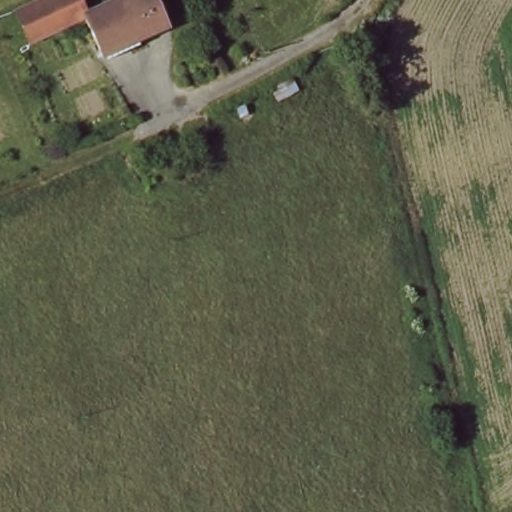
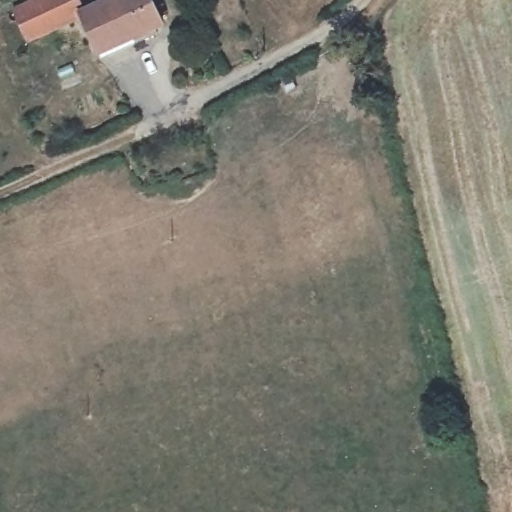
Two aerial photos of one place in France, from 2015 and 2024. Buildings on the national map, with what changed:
unchanged [(85,16),(129,0),(150,0),(159,28),(96,52),(84,17),(28,38),(18,15),(16,9),(41,0),(79,0),(85,16)]

